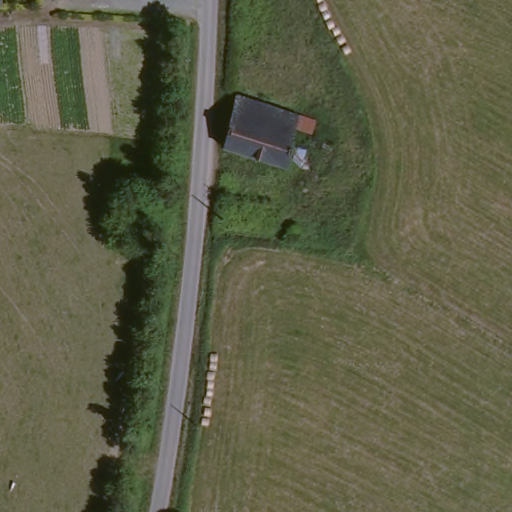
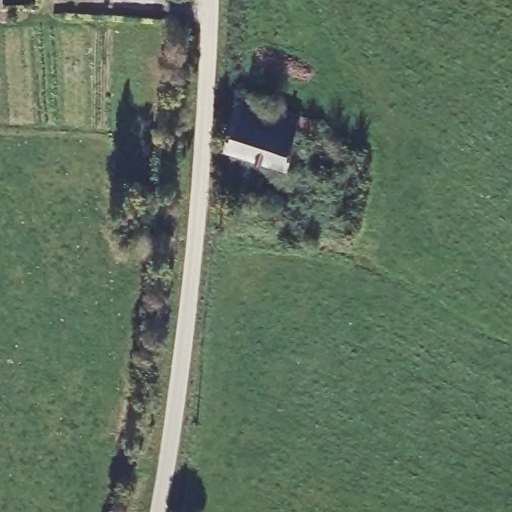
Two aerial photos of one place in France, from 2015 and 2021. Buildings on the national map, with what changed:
unchanged [(243,102),(302,124),(285,170),(225,147),(243,102)]

